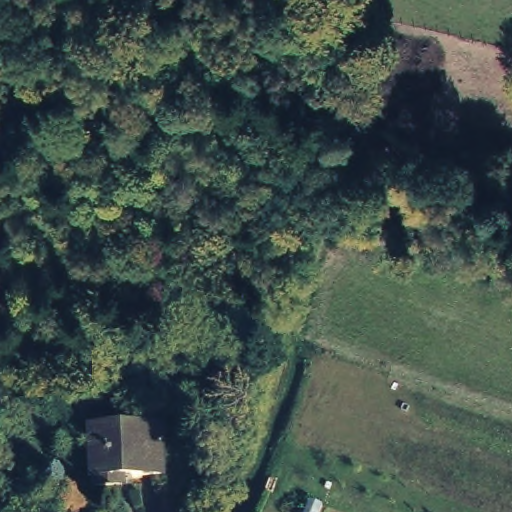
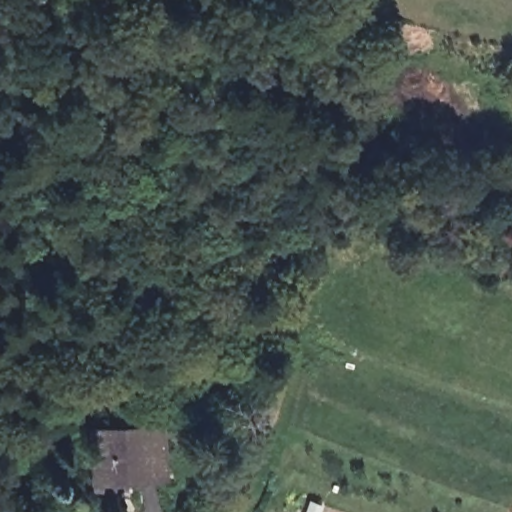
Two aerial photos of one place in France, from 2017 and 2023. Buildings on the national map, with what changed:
unchanged [(167,465),(126,467),(127,477),(101,477),(100,421),(165,416),(167,465)]

